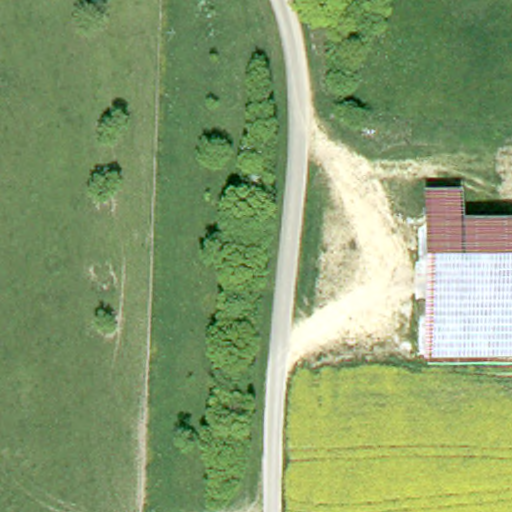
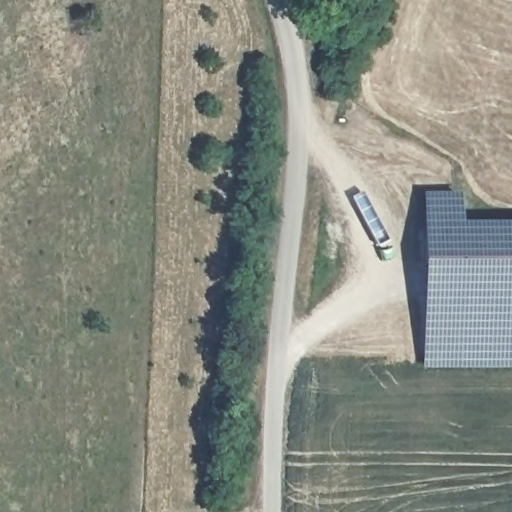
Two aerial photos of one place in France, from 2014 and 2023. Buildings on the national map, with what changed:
unchanged [(463,222),(512,222),(512,366),(422,366),(422,193),(462,192),(463,222)]

